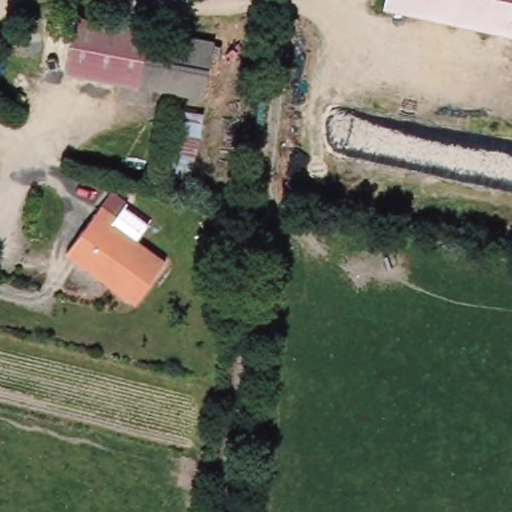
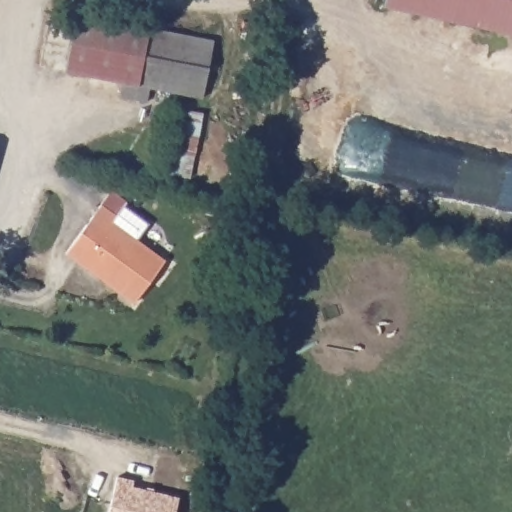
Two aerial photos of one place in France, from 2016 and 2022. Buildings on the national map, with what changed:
unchanged [(385,0),(512,0),(512,36),(383,7),(385,0)]
unchanged [(62,74),(73,20),(150,30),(139,83),(123,82),(62,74)]
unchanged [(177,92),(175,102),(121,95),(123,82),(139,83),(150,30),(150,26),(215,39),(206,96),(177,92)]
unchanged [(133,300),(69,249),(105,204),(118,215),(114,220),(165,260),(133,300)]
new [(134,480),(133,486),(180,497),(177,512),(109,512),(118,475),(134,480)]

